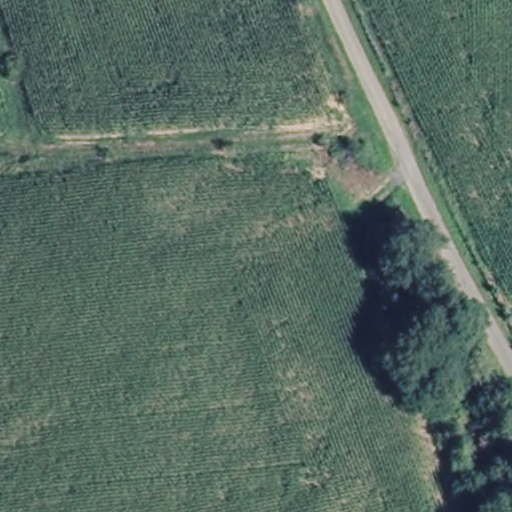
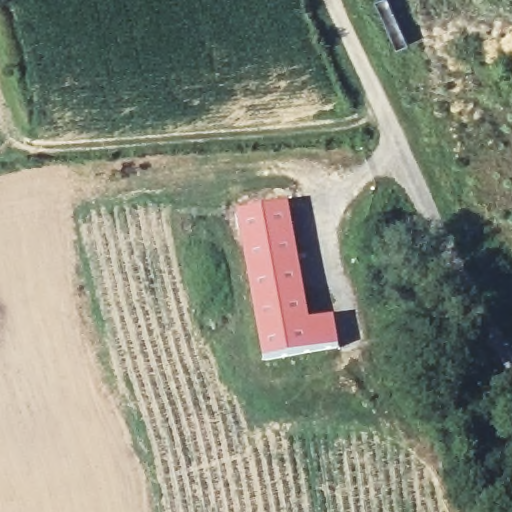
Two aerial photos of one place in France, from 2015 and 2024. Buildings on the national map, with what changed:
new [(309,322),(336,319),(340,349),(265,362),(239,213),(288,204),(309,322)]

